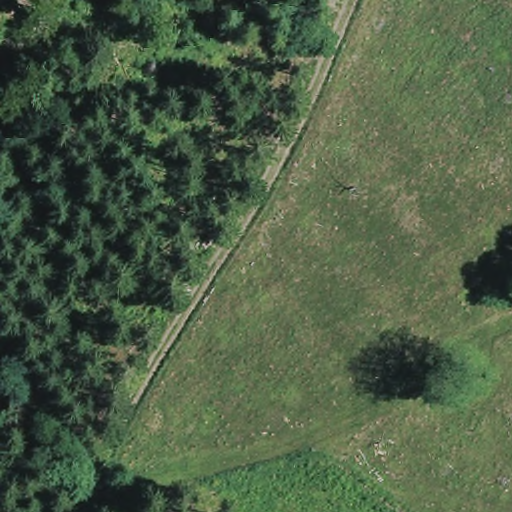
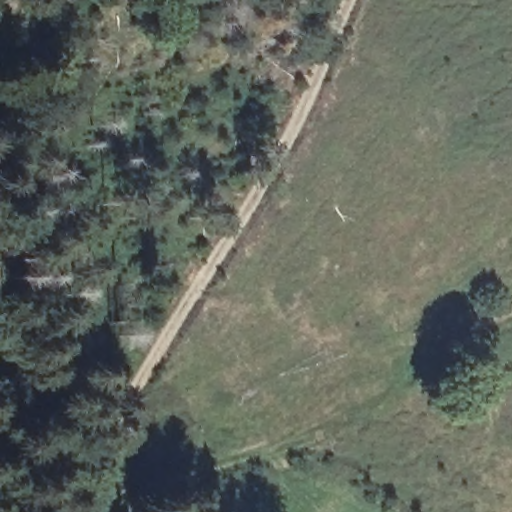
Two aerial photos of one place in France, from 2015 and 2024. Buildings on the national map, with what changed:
[]

